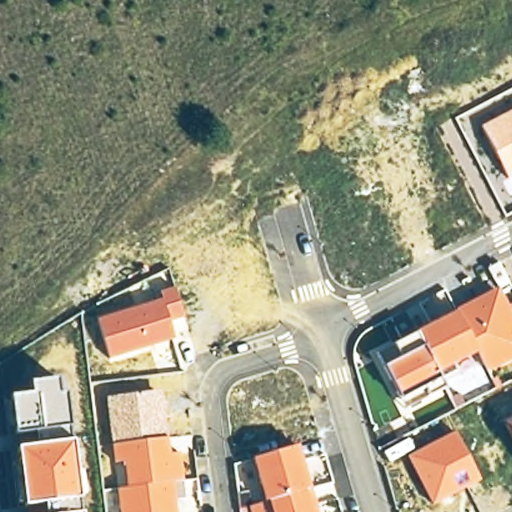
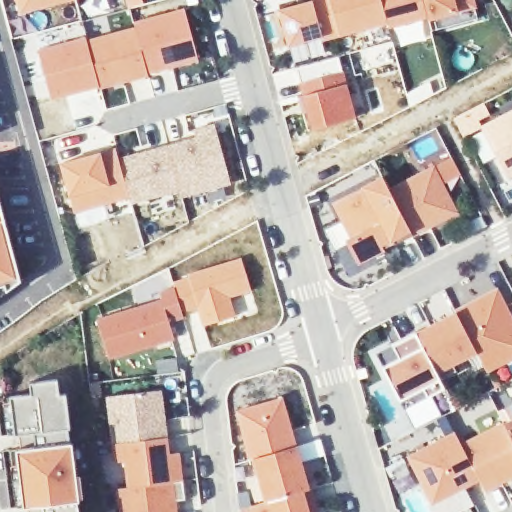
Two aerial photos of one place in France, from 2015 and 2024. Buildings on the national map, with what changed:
new [(16,0),(66,0),(20,14),(16,0)]
new [(307,0),(328,0),(338,37),(322,41),(321,37),(288,46),(277,9),(307,0)]
new [(381,0),(387,24),(338,37),(328,0),(381,0)]
new [(421,0),(473,0),(475,5),(427,20),(421,0)]
new [(147,74),(133,27),(132,21),(183,8),(197,60),(147,74)]
new [(147,76),(98,89),(85,40),(133,27),(147,74),(147,76)]
new [(50,100),(37,50),(85,40),(98,89),(82,91),(65,96),(50,100)]
new [(340,56),(355,117),(312,127),(298,66),(340,56)]
unchanged [(510,178),(481,126),(512,111),(512,177),(510,178)]
new [(197,138),(195,130),(215,125),(231,183),(180,197),(179,190),(167,146),(197,138)]
new [(167,146),(179,190),(130,204),(128,197),(118,159),(167,146)]
new [(98,153),(115,148),(118,159),(128,197),(73,212),(60,163),(85,156),(98,153)]
new [(412,235),(410,231),(388,189),(451,156),(460,174),(443,183),(457,213),(412,235)]
new [(357,265),(343,239),(347,235),(330,202),(360,186),(382,175),(388,189),(410,231),(412,235),(357,265)]
new [(0,297),(0,203),(20,282),(0,297)]
new [(242,259),(251,290),(227,297),(232,311),(202,321),(188,275),(242,259)]
unchanged [(185,319),(171,323),(175,340),(107,360),(96,319),(162,300),(161,292),(175,288),(185,319)]
unchanged [(512,313),(512,362),(485,374),(479,354),(440,376),(447,390),(407,411),(383,367),(398,359),(391,347),(456,311),(500,289),(512,313)]
unchanged [(17,449),(11,398),(32,395),(31,382),(58,380),(60,393),(67,393),(72,427),(72,442),(80,512),(25,512),(17,449)]
unchanged [(122,490),(130,490),(127,463),(115,465),(108,396),(166,391),(172,455),(185,454),(190,498),(179,500),(180,512),(125,512),(122,490)]
new [(295,448),(255,459),(247,461),(235,410),(282,396),(295,448)]
unchanged [(503,421),(512,417),(512,441),(503,421)]
new [(512,441),(512,478),(485,492),(480,482),(483,480),(462,442),(503,421),(512,441)]
unchanged [(462,442),(483,480),(480,482),(434,505),(409,456),(457,432),(462,442)]
unchanged [(320,512),(252,512),(250,505),(265,501),(255,459),(300,447),(320,512)]

